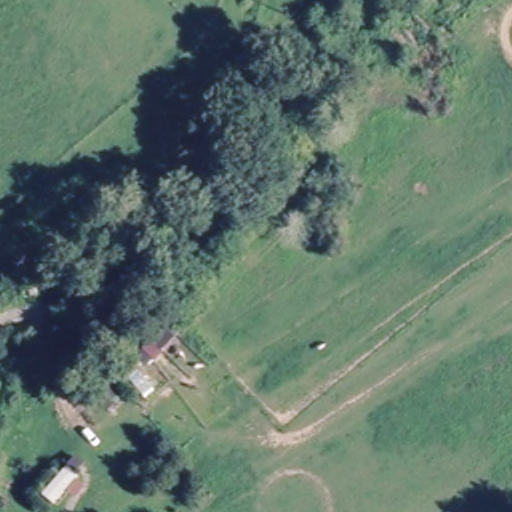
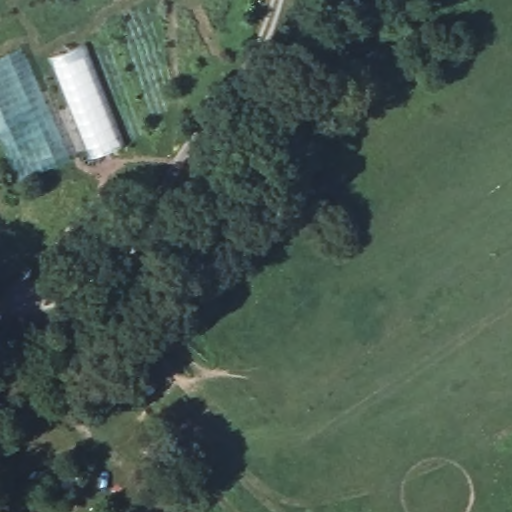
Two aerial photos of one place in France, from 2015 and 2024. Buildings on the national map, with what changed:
new [(86,40),(126,144),(90,159),(50,57),(86,40)]
new [(21,45),(72,159),(13,181),(4,157),(0,149),(0,55),(21,45)]

